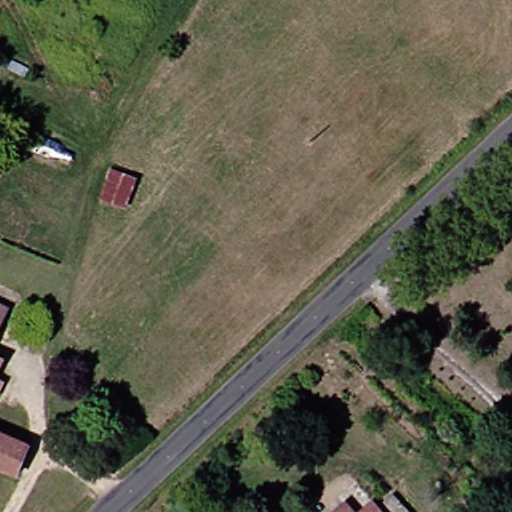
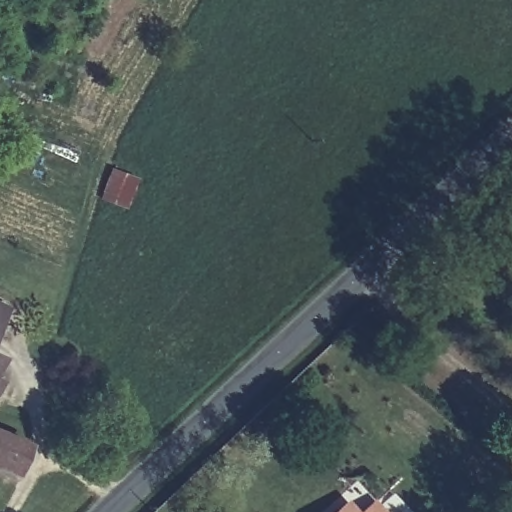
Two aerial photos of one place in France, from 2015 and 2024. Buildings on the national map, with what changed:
unchanged [(0,311),(0,307),(1,308),(0,311)]
unchanged [(0,465),(0,437),(10,441),(1,465),(0,465)]
unchanged [(376,498),(386,508),(389,512),(361,512),(376,498)]
unchanged [(345,512),(329,512),(338,504),(345,512)]

